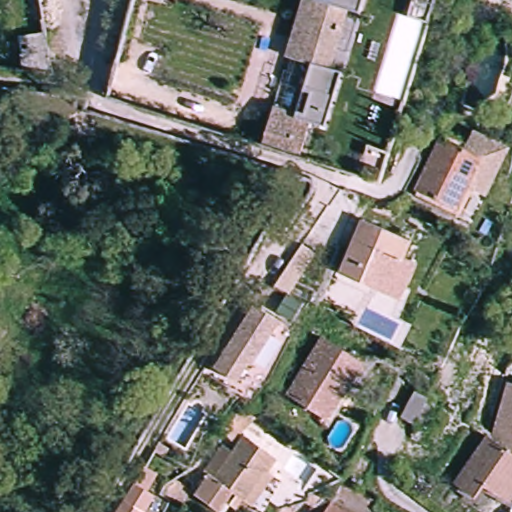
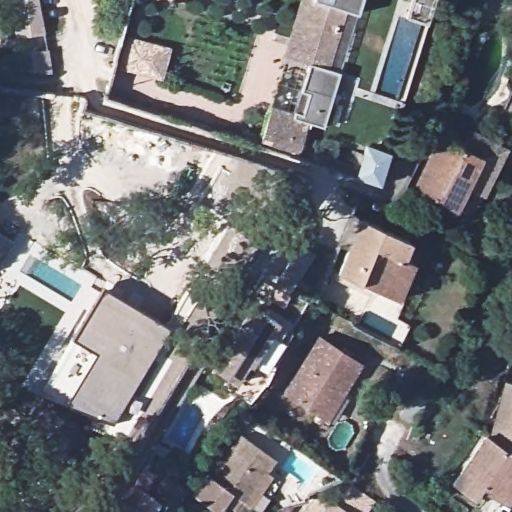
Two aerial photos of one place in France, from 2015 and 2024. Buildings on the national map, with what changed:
unchanged [(348,11),(328,70),(343,73),(325,128),(310,124),(298,160),(275,153),(260,148),(270,115),(292,122),(308,70),(298,67),(285,63),(292,43),(305,1),(315,4),(316,0),(368,0),(362,16),(348,11)]
unchanged [(437,0),(430,23),(404,16),(408,0),(437,0)]
unchanged [(146,129),(203,148),(198,165),(139,150),(146,129)]
unchanged [(472,137),(509,153),(490,201),(472,194),(463,216),(420,197),(442,144),(465,154),(472,137)]
unchanged [(389,153),(381,186),(358,181),(371,148),(389,153)]
unchanged [(235,155),(272,168),(265,186),(230,176),(235,155)]
unchanged [(366,221),(411,241),(387,296),(341,276),(366,221)]
unchanged [(277,290),(308,249),(322,254),(298,297),(277,290)]
new [(95,352),(70,337),(100,285),(166,326),(110,421),(65,403),(95,352)]
unchanged [(275,322),(235,385),(208,368),(248,304),(275,322)]
unchanged [(500,324),(505,326),(498,339),(470,325),(475,312),(500,324)]
unchanged [(319,338),(357,363),(320,419),(282,395),(319,338)]
unchanged [(500,380),(512,383),(512,447),(488,433),(500,380)]
unchanged [(237,445),(226,437),(248,407),(257,413),(258,414),(237,445)]
unchanged [(488,433),(512,447),(512,490),(510,488),(502,499),(480,486),(470,493),(453,482),(485,431),(488,433)]
unchanged [(213,478),(218,481),(250,438),(280,460),(270,474),(274,476),(253,505),(237,494),(228,507),(235,512),(208,512),(195,503),(213,478)]
unchanged [(136,485),(157,499),(148,512),(122,512),(136,485)]
unchanged [(337,512),(333,512),(334,510),(337,512)]

